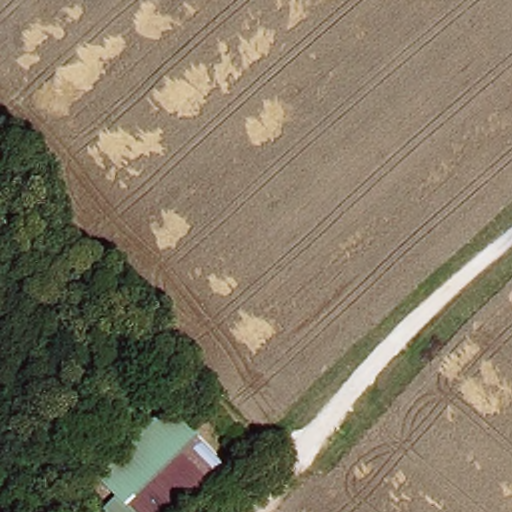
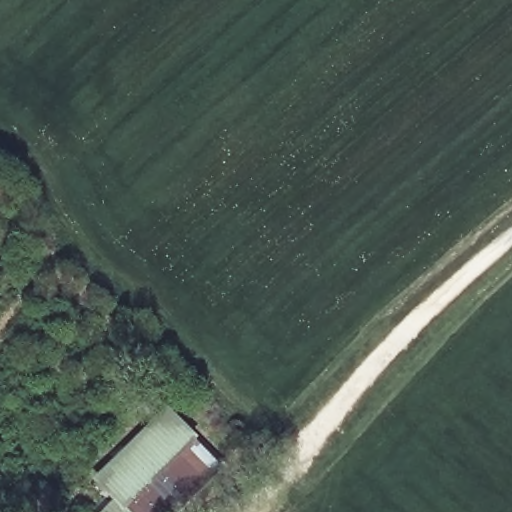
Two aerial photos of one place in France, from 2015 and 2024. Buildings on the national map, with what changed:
unchanged [(180,512),(134,512),(100,477),(168,405),(227,466),(180,512)]

